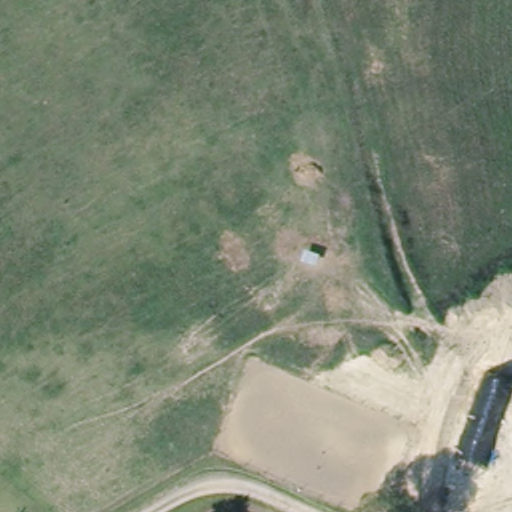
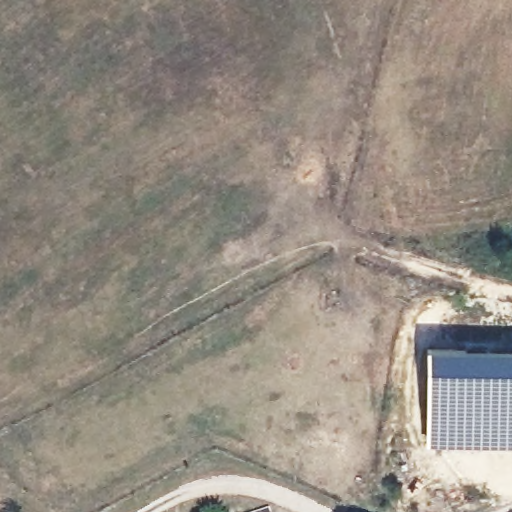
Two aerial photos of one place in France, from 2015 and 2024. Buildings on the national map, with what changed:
new [(427,442),(426,346),(512,346),(512,442),(427,442)]

